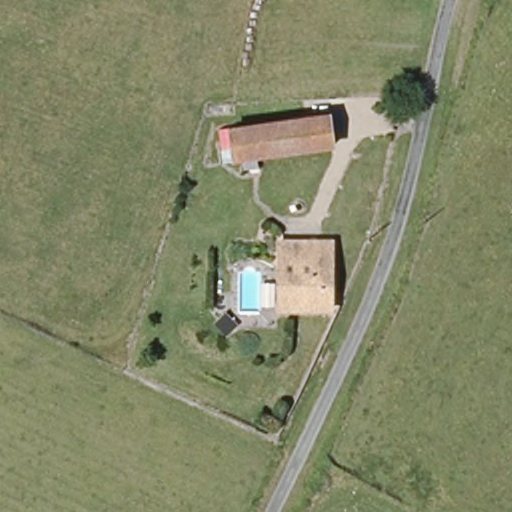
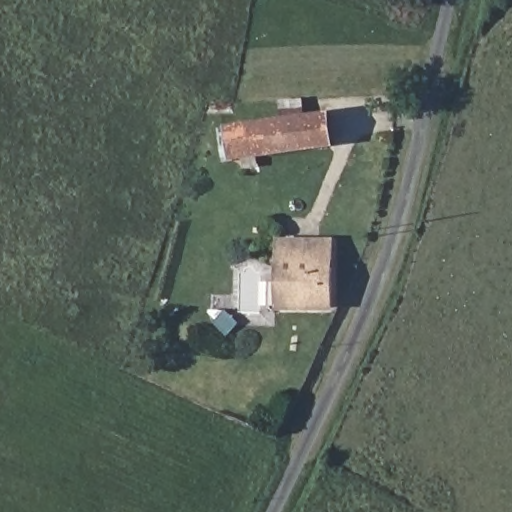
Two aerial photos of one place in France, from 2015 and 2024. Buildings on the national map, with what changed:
unchanged [(330,118),(332,147),(235,157),(232,127),(330,118)]
unchanged [(273,312),(277,246),(296,247),(328,248),(327,277),(325,314),(273,312)]

